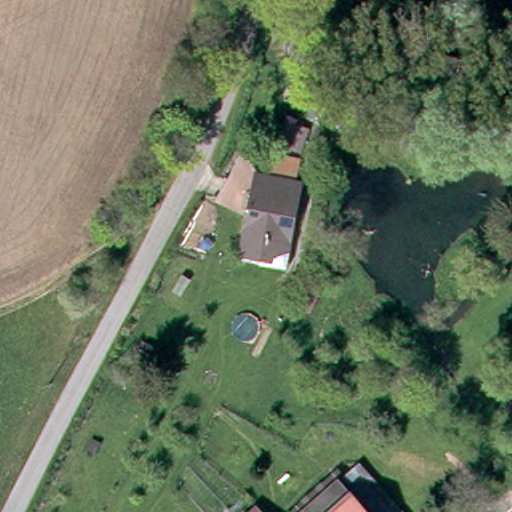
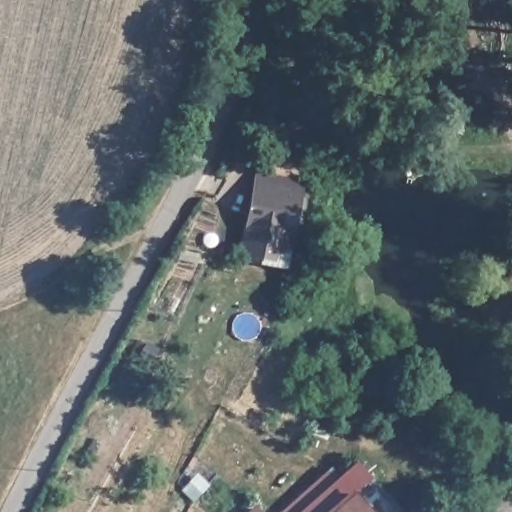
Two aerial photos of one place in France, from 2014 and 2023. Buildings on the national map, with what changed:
unchanged [(273,190),(268,189),(251,262),(238,259),(255,172),(269,175),(272,155),(302,158),(298,178),(305,180),(304,200),(273,190)]
unchanged [(251,262),(268,189),(273,190),(265,225),(295,235),(287,274),(251,262)]
unchanged [(304,200),(295,235),(265,225),(273,190),(304,200)]
unchanged [(398,512),(309,512),(353,471),(398,512)]

